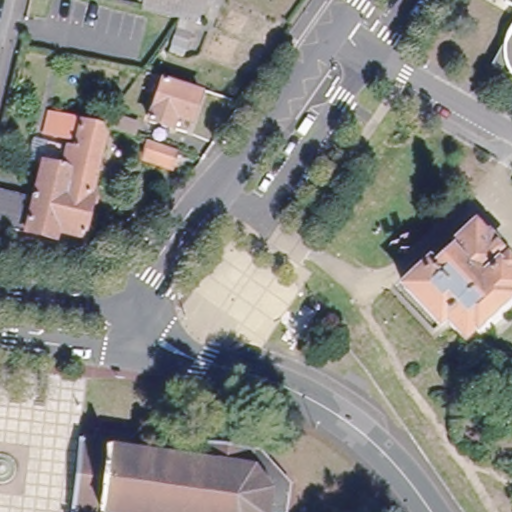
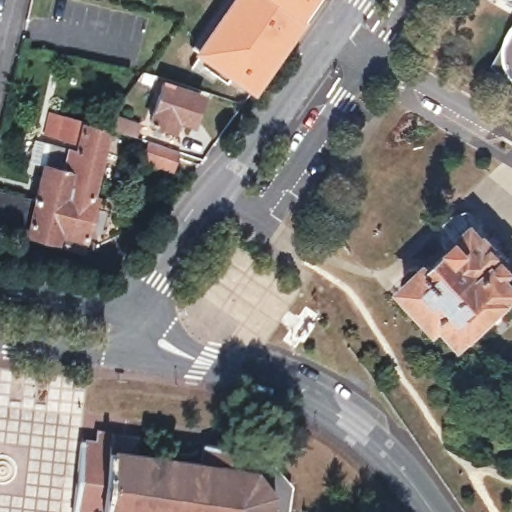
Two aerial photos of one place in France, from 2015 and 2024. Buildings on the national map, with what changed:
demolished [(189,21),(192,0),(202,0),(197,23),(189,21)]
new [(251,90),(195,47),(227,0),(308,0),(299,14),(251,90)]
unchanged [(505,0),(512,0),(512,5),(505,0)]
unchanged [(502,46),(502,44),(502,41),(503,38),(504,35),(505,33),(506,30),(507,28),(509,27),(511,25),(512,25),(512,74),(492,63),(502,46)]
demolished [(187,33),(184,47),(169,43),(172,29),(187,33)]
unchanged [(201,95),(191,124),(172,118),(168,130),(149,123),(164,82),(201,95)]
unchanged [(71,147),(78,148),(80,139),(61,134),(65,112),(89,118),(92,109),(102,111),(100,120),(105,126),(95,174),(67,167),(71,147)]
unchanged [(57,238),(29,232),(37,198),(45,161),(40,160),(44,140),(50,142),(71,147),(67,167),(95,174),(91,191),(94,192),(84,235),(59,230),(57,238)]
unchanged [(170,171),(143,162),(150,143),(178,152),(170,171)]
unchanged [(37,198),(29,232),(0,225),(0,189),(37,198)]
unchanged [(403,275),(403,271),(405,267),(407,264),(410,262),(415,262),(422,267),(467,228),(478,239),(482,238),(502,259),(496,267),(512,284),(512,307),(468,348),(440,318),(436,322),(402,284),(406,280),(403,275)]
unchanged [(80,439),(95,440),(96,431),(136,435),(135,451),(203,456),(204,438),(253,443),(253,444),(263,446),(291,479),(288,512),(112,512),(107,511),(107,512),(73,512),(80,439)]

